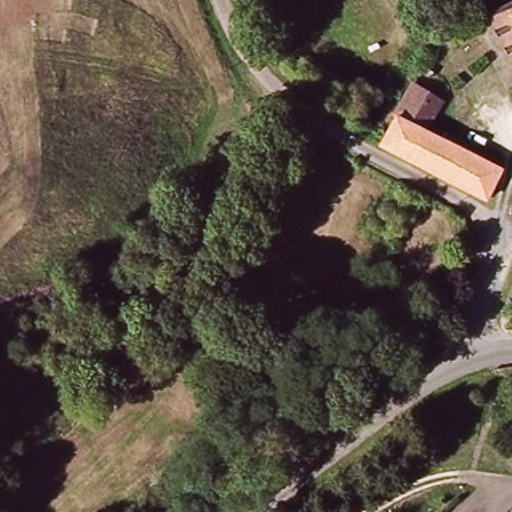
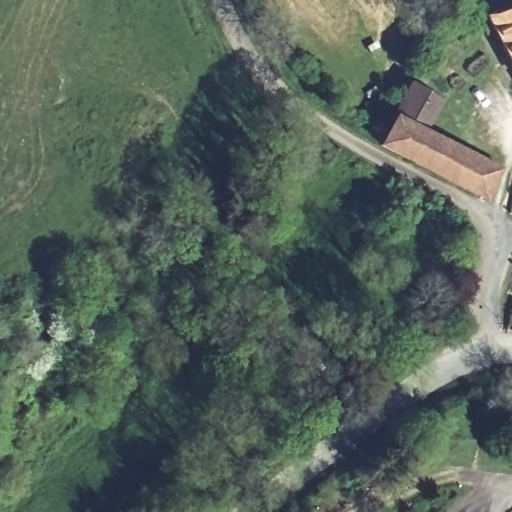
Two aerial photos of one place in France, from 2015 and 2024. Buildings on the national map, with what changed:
unchanged [(512,9),(512,69),(486,23),(512,9)]
unchanged [(397,117),(414,85),(444,104),(429,132),(397,117)]
unchanged [(382,146),(385,140),(397,117),(429,132),(502,170),(488,201),(382,146)]

